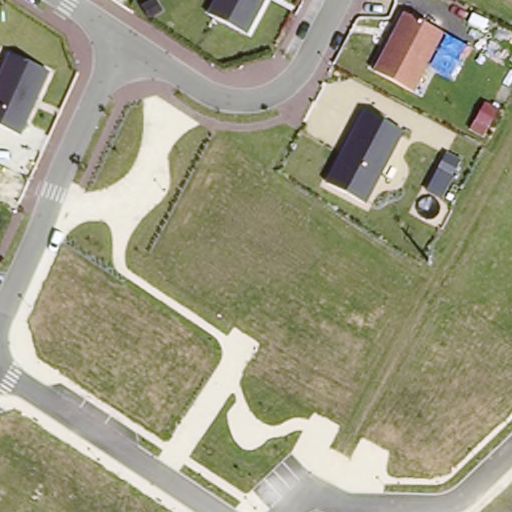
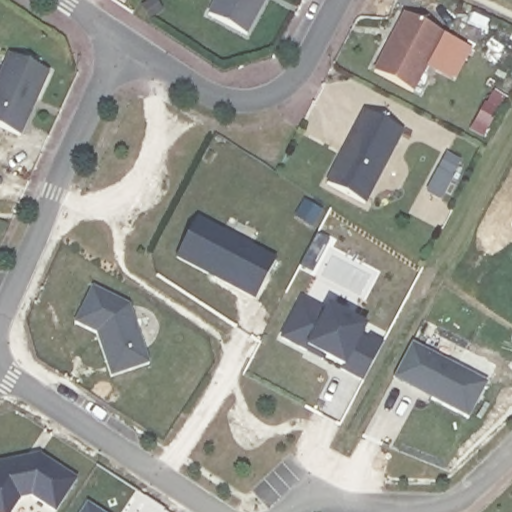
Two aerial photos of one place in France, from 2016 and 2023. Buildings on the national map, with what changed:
unchanged [(213,0),(264,0),(247,32),(207,12),(213,0)]
unchanged [(404,13),(444,32),(414,89),(374,70),(404,13)]
new [(447,36),(474,50),(456,83),(431,68),(447,36)]
unchanged [(49,70),(20,133),(0,124),(0,71),(9,51),(49,70)]
unchanged [(403,128),(366,202),(325,181),(364,106),(403,128)]
new [(197,220),(276,262),(256,300),(176,258),(197,220)]
new [(111,378),(107,364),(97,335),(76,325),(94,289),(130,307),(145,351),(149,365),(111,378)]
new [(343,371),(345,365),(326,356),(324,361),(282,338),(302,300),(325,310),(328,305),(368,325),(365,333),(386,342),(364,382),(343,371)]
new [(412,345),(490,384),(471,420),(394,380),(412,345)]
new [(40,453),(80,480),(58,512),(57,512),(31,496),(20,498),(13,512),(0,512),(0,462),(40,453)]
new [(101,512),(83,512),(88,504),(101,512)]

